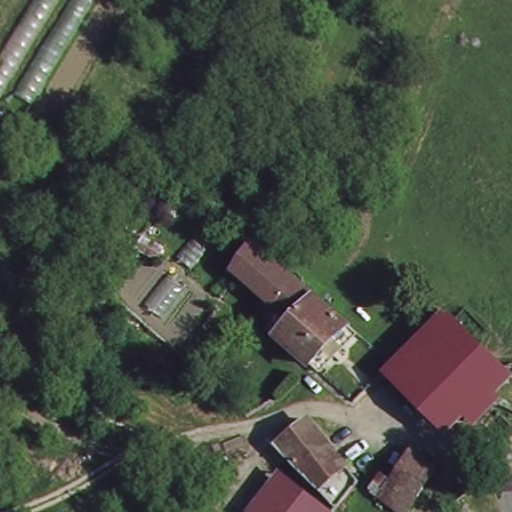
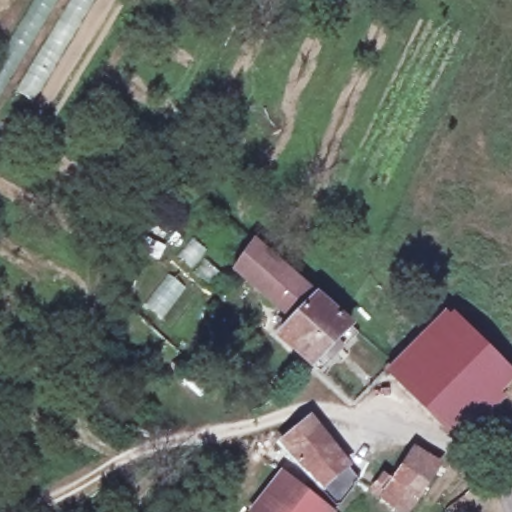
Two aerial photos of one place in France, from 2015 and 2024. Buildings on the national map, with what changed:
unchanged [(12,98),(2,116),(0,115),(0,53),(31,0),(96,0),(31,109),(12,98)]
unchanged [(324,366),(317,359),(282,329),(292,312),(241,267),(259,240),(333,302),(358,323),(324,366)]
unchanged [(443,424),(393,379),(416,353),(446,319),(455,328),(477,349),(500,371),(445,424),(443,424)]
unchanged [(500,371),(512,383),(512,405),(497,424),(468,426),(461,427),(456,427),(452,426),(449,425),(445,424),(500,371)]
unchanged [(186,418),(168,401),(180,389),(199,404),(186,418)]
unchanged [(349,512),(272,512),(312,468),(291,446),(318,418),(369,473),(376,481),(349,512)]
unchanged [(392,479),(396,481),(418,451),(444,466),(415,512),(412,512),(381,493),(392,479)]

